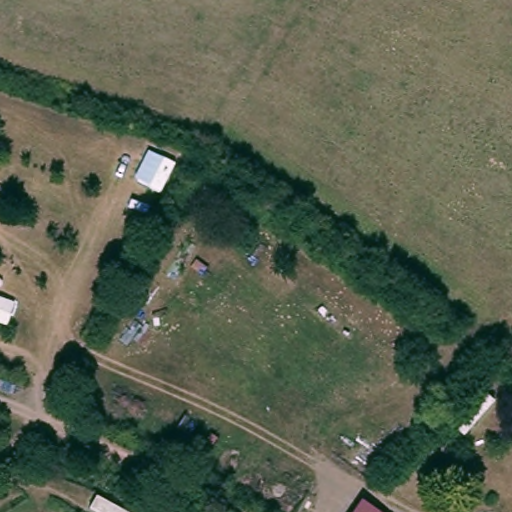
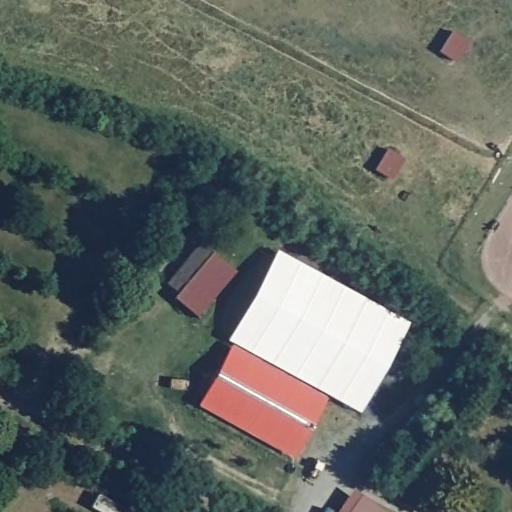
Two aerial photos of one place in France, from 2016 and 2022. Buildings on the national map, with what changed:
new [(174,296),(177,291),(167,283),(200,242),(234,271),(197,316),(174,296)]
new [(325,396),(231,345),(227,342),(276,251),(407,322),(358,412),(325,396)]
new [(197,406),(231,345),(325,396),(294,457),(197,406)]
unchanged [(360,501),(374,512),(352,512),(360,501)]

